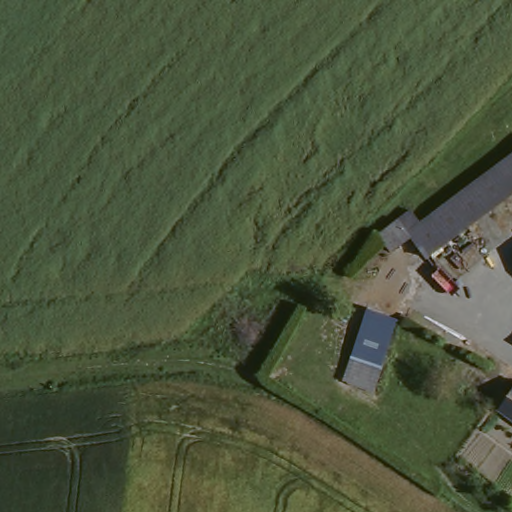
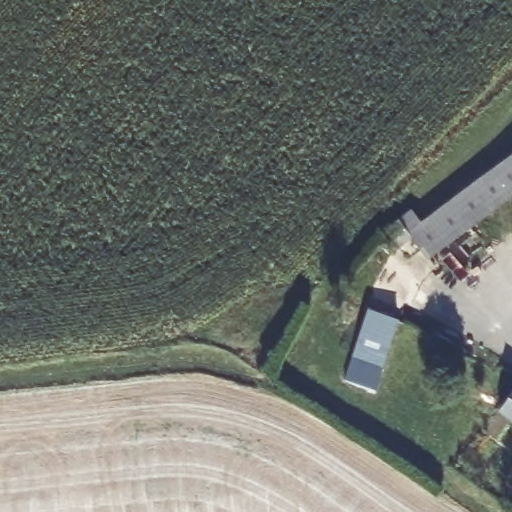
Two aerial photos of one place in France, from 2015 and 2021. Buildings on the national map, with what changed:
unchanged [(378,232),(391,222),(405,212),(415,226),(512,152),(512,197),(424,265),(402,236),(389,247),(378,232)]
unchanged [(383,373),(352,362),(373,308),(400,317),(383,373)]
unchanged [(379,375),(372,398),(344,388),(350,366),(379,375)]
unchanged [(501,406),(512,392),(512,414),(501,406)]

